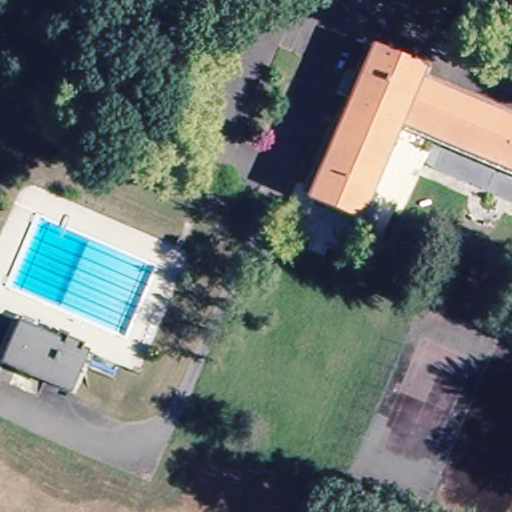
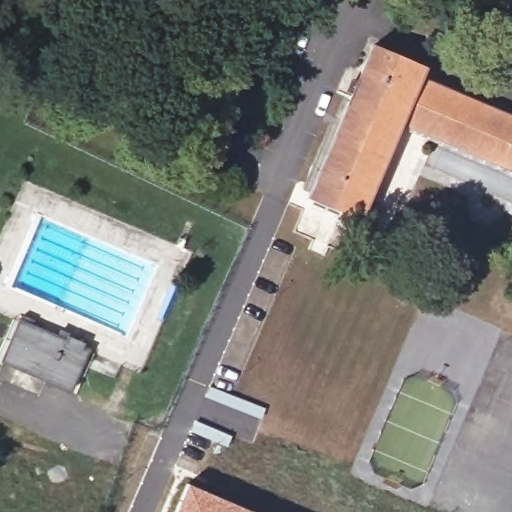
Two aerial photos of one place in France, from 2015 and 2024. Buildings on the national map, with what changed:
unchanged [(405,125),(360,220),(303,196),(366,40),(429,66),(428,74),(512,111),(512,171),(405,125)]
unchanged [(0,357),(0,347),(14,317),(51,333),(55,325),(89,343),(69,388),(0,357)]
new [(187,485),(250,512),(175,512),(187,485)]

